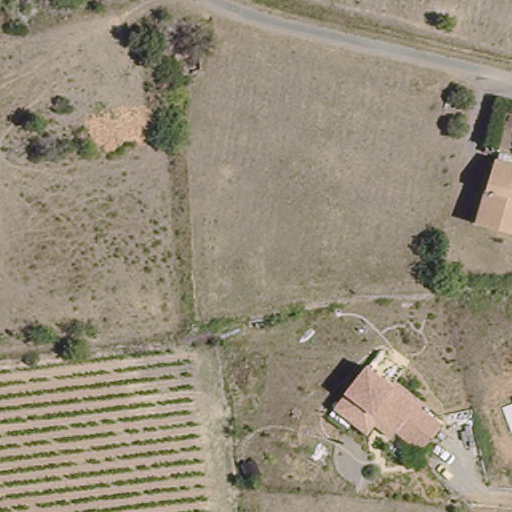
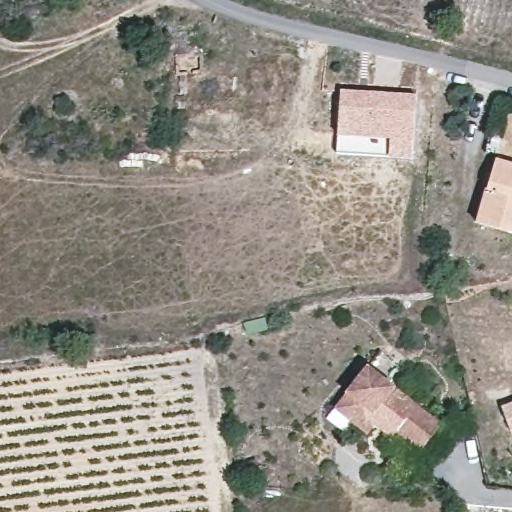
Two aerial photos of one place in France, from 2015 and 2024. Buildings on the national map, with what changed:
new [(417,95),(415,140),(411,157),(337,155),(339,137),(342,91),(417,95)]
unchanged [(512,234),(478,224),(494,162),(512,166),(512,234)]
unchanged [(446,424),(426,451),(377,425),(370,433),(337,408),(368,365),(446,424)]
unchanged [(512,405),(512,432),(504,408),(512,405)]

